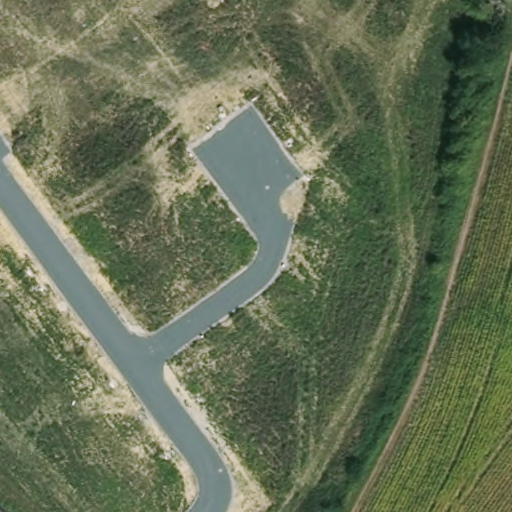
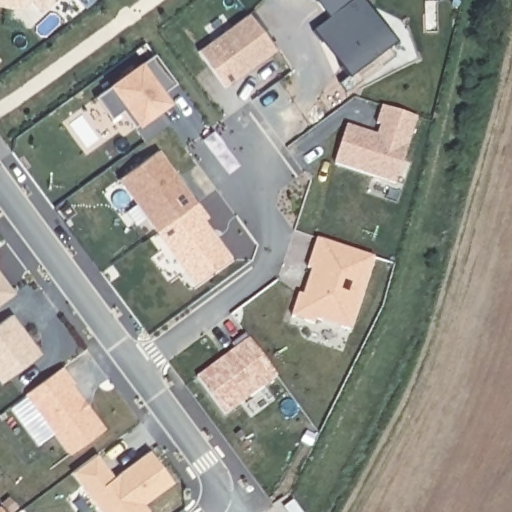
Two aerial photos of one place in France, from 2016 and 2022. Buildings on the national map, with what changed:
new [(31,2),(21,11),(0,7),(0,0),(54,0),(41,13),(31,2)]
new [(226,89),(199,52),(249,15),(276,51),(258,65),(241,77),(226,89)]
new [(378,136),(382,126),(378,125),(383,107),(418,119),(397,184),(335,164),(348,126),(378,136)]
new [(158,151),(197,204),(158,232),(157,233),(119,180),(158,151)]
new [(197,204),(208,219),(204,222),(231,259),(196,284),(158,232),(197,204)]
new [(300,294),(305,295),(312,298),(315,287),(308,284),(313,270),(309,268),(318,239),(375,257),(351,330),(317,319),(316,324),(293,316),(300,294)]
new [(15,294),(0,306),(0,274),(15,294)]
new [(12,315),(41,355),(2,384),(0,381),(0,325),(12,315)]
new [(231,341),(227,336),(241,326),(272,369),(220,407),(192,370),(231,341)]
new [(75,384),(73,385),(81,396),(87,404),(106,429),(71,455),(26,395),(63,368),(75,384)]
new [(114,478),(118,475),(150,452),(173,483),(143,505),(148,512),(101,512),(72,473),(96,455),(114,478)]
unchanged [(6,512),(0,512),(0,506),(6,512)]

